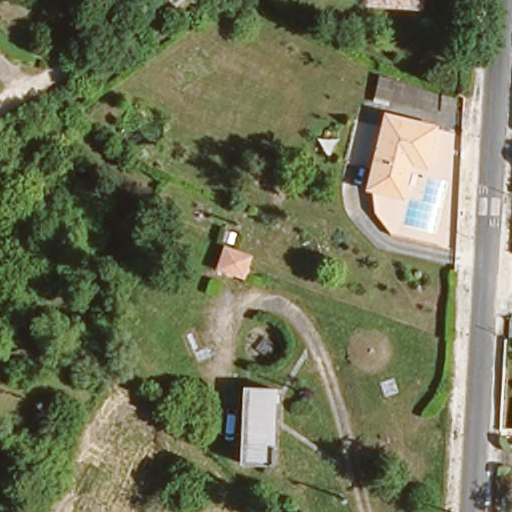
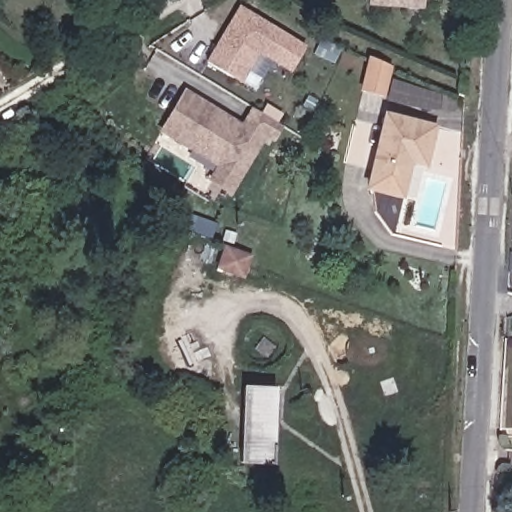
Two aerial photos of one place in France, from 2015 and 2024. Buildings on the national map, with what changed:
unchanged [(418,3),(407,2),(376,1),(374,0),(418,0),(418,3)]
new [(271,62),(261,80),(248,72),(241,84),(205,62),(238,6),(306,47),(290,74),(271,62)]
new [(457,100),(453,116),(359,91),(367,59),(393,65),(389,79),(411,85),(457,100)]
new [(214,167),(157,132),(184,89),(240,124),(250,108),(283,127),(273,143),(265,138),(230,195),(206,181),(214,167)]
unchanged [(380,113),(430,126),(421,166),(404,161),(393,196),(361,185),(380,113)]
unchanged [(247,263),(243,275),(241,282),(212,272),(219,254),(247,263)]
unchanged [(269,353),(259,365),(248,356),(258,344),(269,353)]
unchanged [(278,390),(278,465),(237,462),(238,389),(278,390)]

